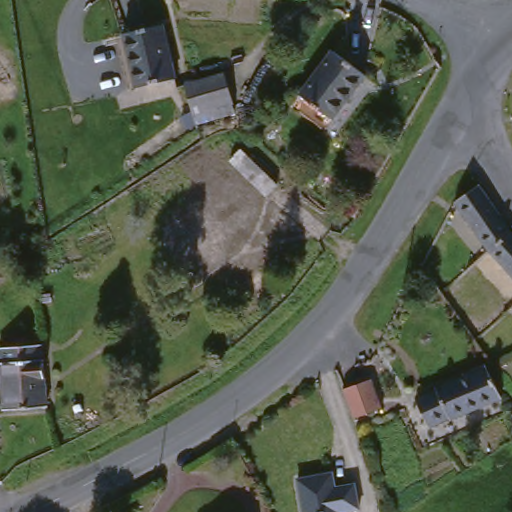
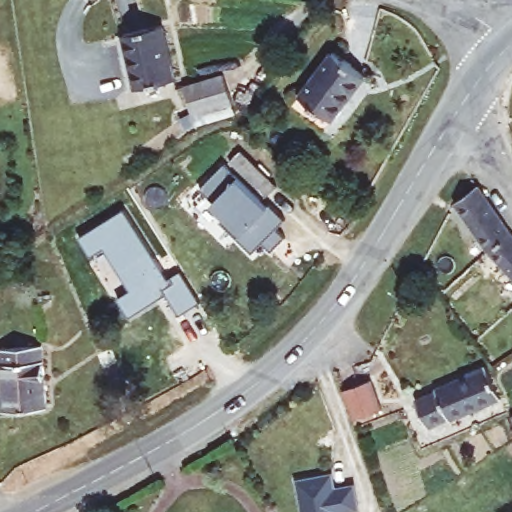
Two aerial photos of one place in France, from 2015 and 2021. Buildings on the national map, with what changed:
unchanged [(180,83),(135,97),(117,42),(162,28),(180,83)]
unchanged [(327,137),(290,108),(331,51),(368,78),(327,137)]
unchanged [(193,121),(185,97),(219,86),(225,111),(193,121)]
demolished [(274,192),(259,206),(221,168),(236,155),(274,192)]
new [(237,176),(268,207),(282,220),(275,228),(283,237),(271,249),(262,240),(250,251),(217,220),(220,214),(211,204),(214,202),(199,188),(224,164),(237,176)]
unchanged [(340,188),(332,200),(310,184),(322,172),(340,188)]
unchanged [(482,243),(453,204),(475,183),(507,224),(482,243)]
new [(116,202),(164,277),(177,270),(199,305),(178,317),(165,296),(129,319),(115,298),(127,290),(99,246),(86,253),(72,232),(116,202)]
unchanged [(512,282),(485,247),(482,243),(507,224),(512,229),(512,282)]
unchanged [(0,418),(0,352),(35,349),(43,413),(0,418)]
unchanged [(428,438),(413,409),(433,398),(431,396),(456,385),(455,384),(480,371),(497,400),(453,424),(440,432),(428,438)]
unchanged [(363,386),(373,413),(373,414),(372,414),(345,424),(344,424),(335,396),(363,386)]
unchanged [(512,427),(508,420),(512,418),(512,427)]
unchanged [(344,468),(346,480),(367,480),(370,508),(353,509),(353,512),(302,512),(297,473),(344,468)]

